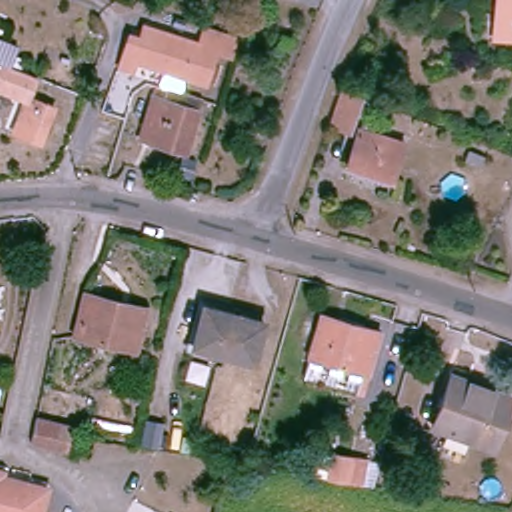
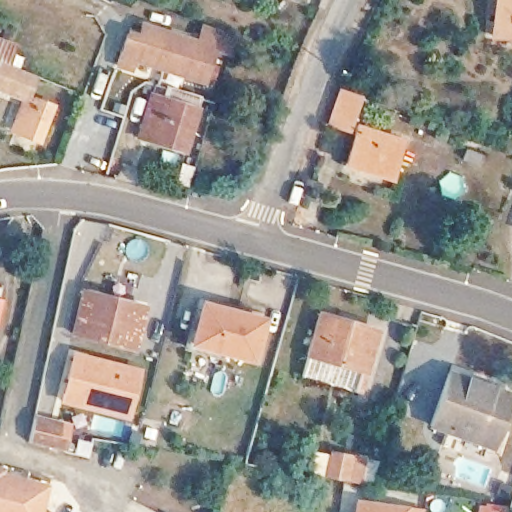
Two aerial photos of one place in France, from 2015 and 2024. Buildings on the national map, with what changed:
unchanged [(498,10),(498,0),(509,0),(512,0),(512,35),(499,35),(498,10)]
unchanged [(235,42),(232,52),(230,58),(216,54),(206,86),(137,65),(135,74),(121,70),(128,45),(130,39),(131,39),(142,42),(145,30),(200,47),(204,36),(206,30),(235,42)]
unchanged [(32,92),(56,101),(42,135),(17,126),(30,97),(0,84),(0,42),(14,49),(8,62),(39,75),(32,92)]
unchanged [(350,122),(333,116),(344,86),(361,92),(350,122)]
unchanged [(200,109),(186,147),(143,134),(157,94),(200,109)]
unchanged [(403,138),(390,173),(347,157),(359,121),(403,138)]
unchanged [(146,303),(136,345),(76,330),(87,288),(146,303)]
unchanged [(265,316),(255,355),(197,341),(207,302),(265,316)]
unchanged [(382,326),(371,368),(312,350),(323,310),(382,326)]
new [(73,351),(137,367),(125,412),(61,396),(73,351)]
unchanged [(509,391),(492,443),(433,422),(451,371),(509,391)]
unchanged [(29,445),(35,417),(73,427),(66,455),(29,445)]
unchanged [(366,462),(362,487),(328,481),(327,481),(332,456),(366,462)]
unchanged [(42,486),(37,512),(0,512),(0,476),(42,486)]
new [(359,506),(406,512),(358,512),(359,506)]

